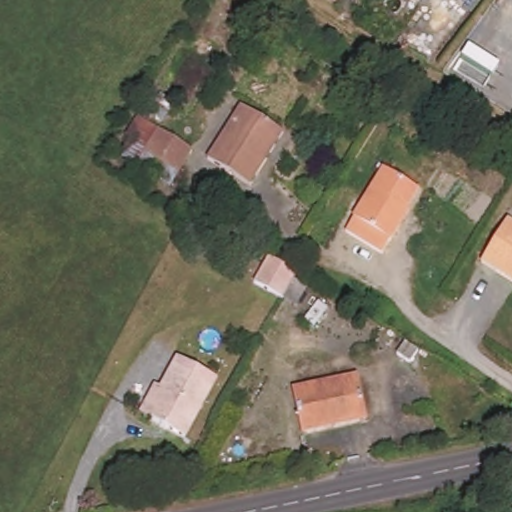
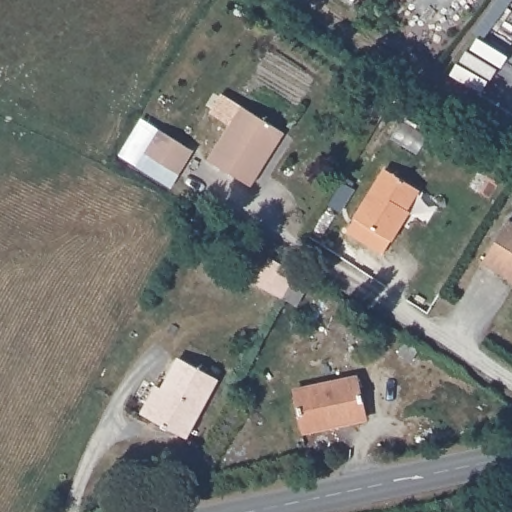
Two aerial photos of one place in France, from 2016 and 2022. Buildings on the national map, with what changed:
unchanged [(284,132),(251,186),(208,159),(242,106),(284,132)]
unchanged [(193,156),(179,179),(145,158),(160,135),(193,156)]
unchanged [(351,232),(390,169),(423,190),(411,210),(413,212),(387,254),(351,232)]
unchanged [(512,224),(512,285),(480,264),(507,222),(512,224)]
unchanged [(283,288),(255,272),(269,247),(297,262),(283,288)]
unchanged [(161,392),(167,395),(184,364),(222,384),(190,443),(156,425),(146,420),(161,392)]
unchanged [(371,419),(308,432),(299,390),(362,377),(371,419)]

